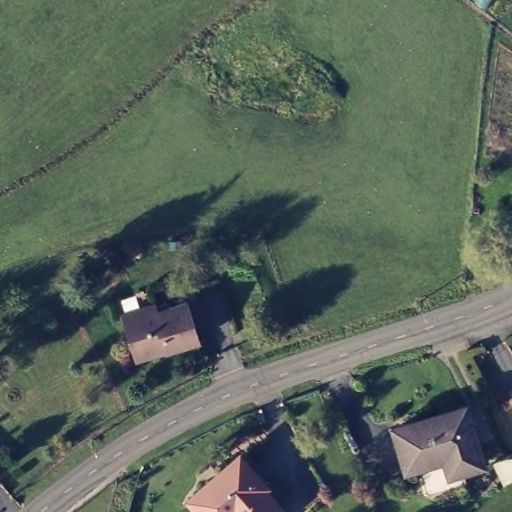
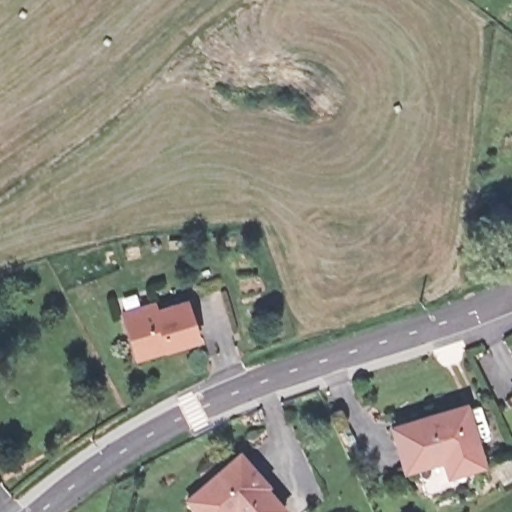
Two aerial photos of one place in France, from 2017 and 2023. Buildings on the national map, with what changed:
unchanged [(135,344),(122,303),(155,293),(157,300),(187,291),(199,330),(166,340),(137,349),(135,344)]
unchanged [(512,388),(512,390),(511,389),(512,388)]
unchanged [(445,447),(407,459),(395,418),(465,397),(482,454),(460,461),(450,464),(445,447)]
unchanged [(277,501),(263,512),(206,512),(186,490),(235,447),(260,475),(257,477),(277,501)]

